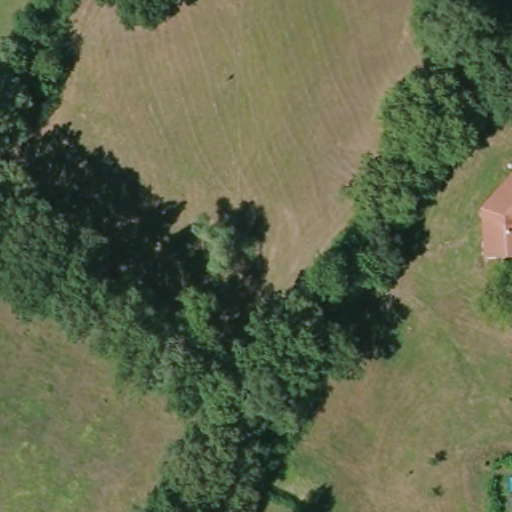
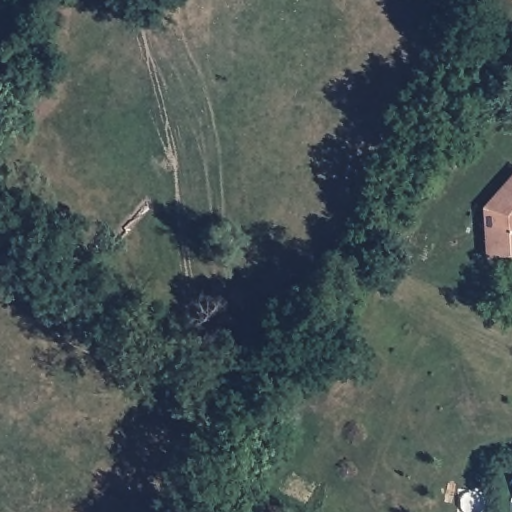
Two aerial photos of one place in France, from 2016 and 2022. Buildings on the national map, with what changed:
unchanged [(483,260),(483,211),(512,180),(512,260),(483,260)]

